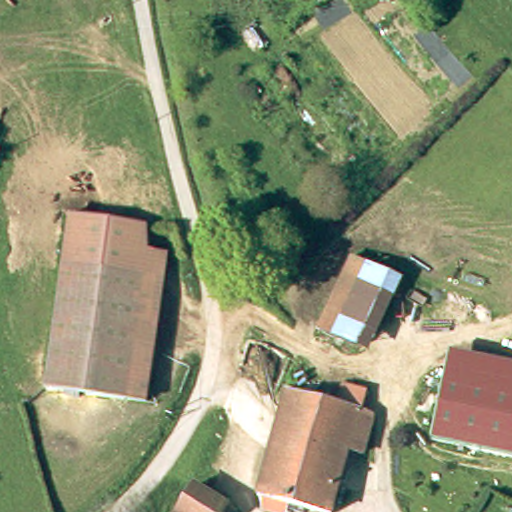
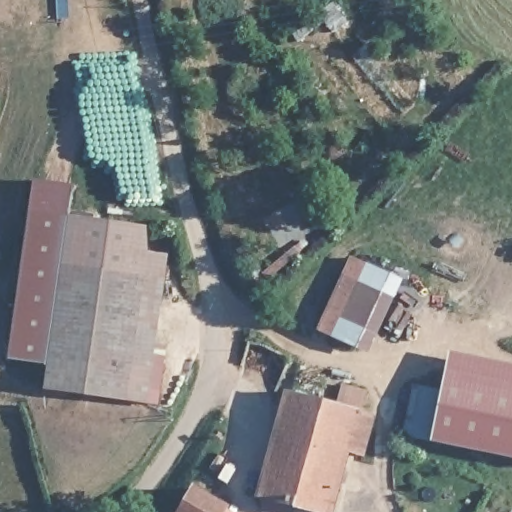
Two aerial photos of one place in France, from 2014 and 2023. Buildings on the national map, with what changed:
new [(8,359),(34,178),(72,184),(67,214),(69,214),(62,270),(47,365),(8,359)]
unchanged [(69,214),(172,228),(148,402),(125,400),(144,284),(62,270),(69,214)]
unchanged [(361,364),(315,345),(356,260),(403,283),(361,364)]
unchanged [(62,270),(144,284),(125,400),(124,406),(43,392),(62,270)]
unchanged [(512,363),(512,457),(432,441),(449,351),(512,363)]
unchanged [(342,454),(337,474),(344,476),(342,486),(336,485),(328,512),(316,512),(302,509),(301,512),(286,512),(287,507),(260,500),(285,392),(370,415),(360,458),(342,454)]
unchanged [(214,512),(175,512),(185,495),(214,512)]

